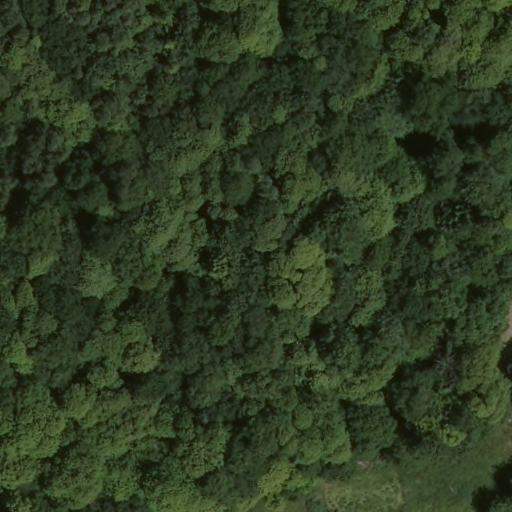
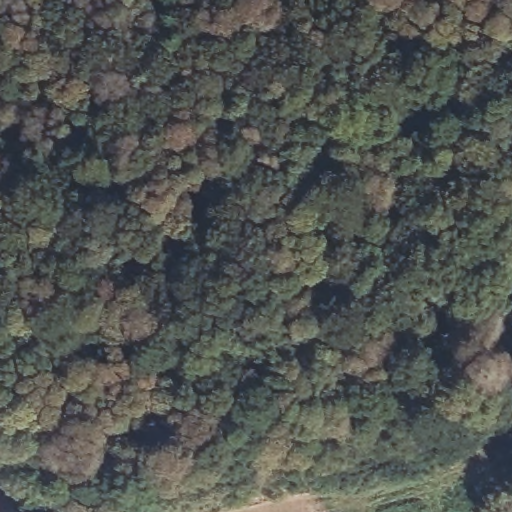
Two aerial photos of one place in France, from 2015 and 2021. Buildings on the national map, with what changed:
[]

